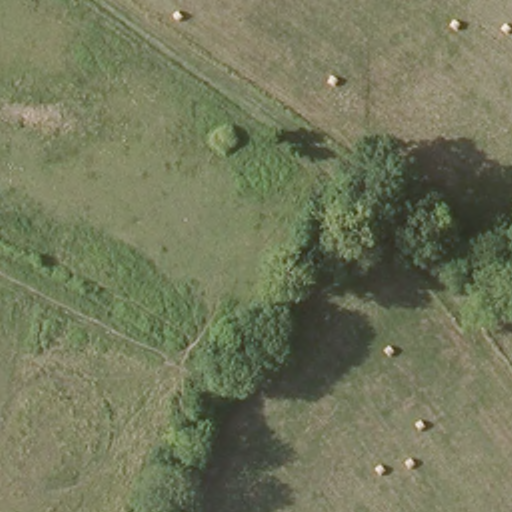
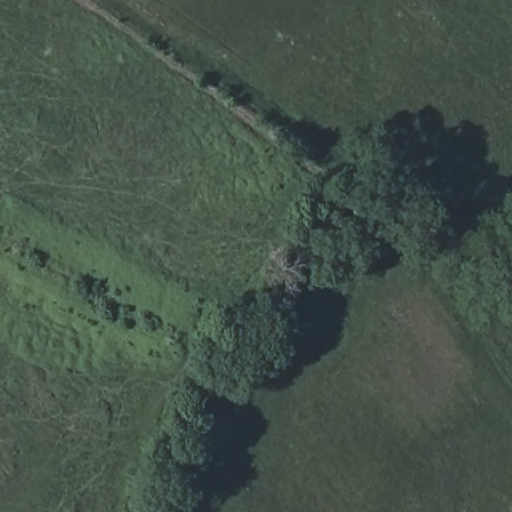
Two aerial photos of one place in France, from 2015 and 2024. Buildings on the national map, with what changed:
[]

